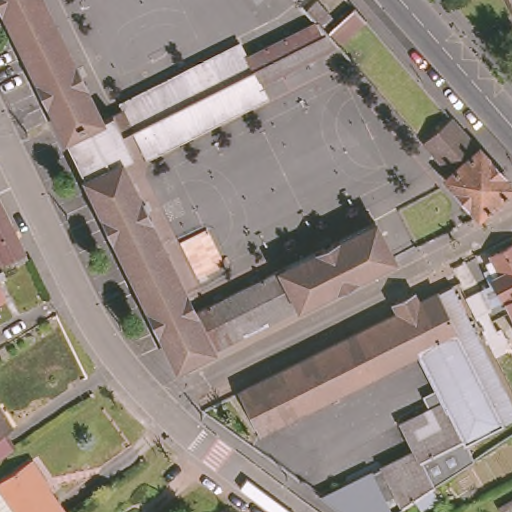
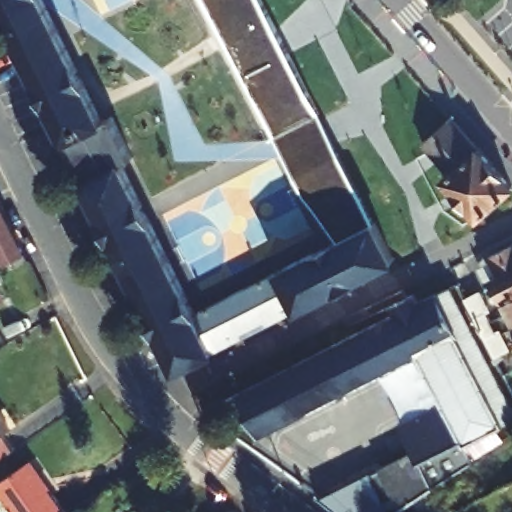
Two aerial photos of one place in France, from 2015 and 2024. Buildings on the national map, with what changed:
unchanged [(112,114),(122,135),(74,159),(0,6),(0,0),(43,0),(102,119),(112,114)]
new [(273,136),(203,0),(262,0),(319,112),(273,136)]
demolished [(306,9),(315,0),(317,0),(337,22),(353,7),(365,21),(338,46),(336,44),(258,83),(252,70),(245,57),(316,21),(306,9)]
demolished [(301,0),(299,2),(297,0),(301,0)]
new [(319,112),(375,221),(339,239),(313,205),(294,175),(273,136),(319,112)]
unchanged [(511,187),(478,217),(444,177),(449,172),(421,142),(422,140),(449,117),(511,187)]
unchanged [(122,135),(133,156),(122,162),(195,312),(375,220),(394,258),(330,292),(207,354),(176,370),(74,159),(122,135)]
unchanged [(12,256),(3,261),(0,256),(0,190),(30,250),(33,255),(17,263),(12,256)]
unchanged [(502,247),(512,243),(512,267),(502,247)]
unchanged [(492,259),(490,254),(502,247),(512,267),(512,310),(510,311),(486,262),(492,259)]
unchanged [(457,466),(447,446),(419,460),(432,486),(401,506),(392,512),(337,512),(320,499),(382,467),(415,452),(401,424),(444,403),(419,353),(260,433),(239,393),(398,312),(394,304),(414,294),(418,302),(451,286),(512,408),(512,419),(476,437),(480,445),(483,452),(472,458),(457,466)]
unchanged [(511,348),(496,356),(481,325),(467,296),(481,290),(491,310),(487,312),(491,320),(496,330),(501,327),(511,348)]
unchanged [(3,300),(0,301),(0,294),(3,300)]
unchanged [(512,310),(512,315),(510,311),(512,310)]
unchanged [(9,429),(3,433),(14,448),(0,458),(0,416),(9,429)]
unchanged [(0,501),(0,486),(7,481),(6,478),(39,456),(76,510),(72,512),(7,512),(0,501)]

